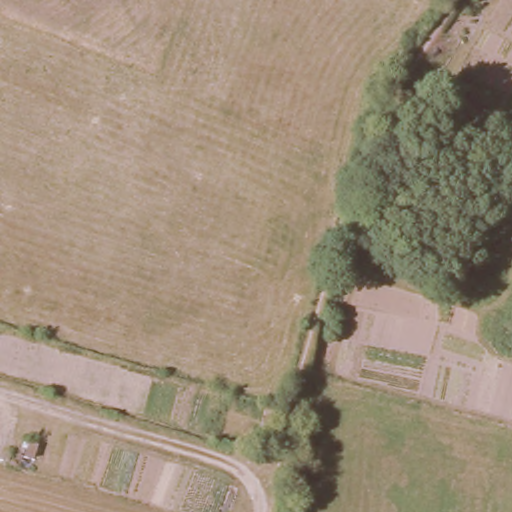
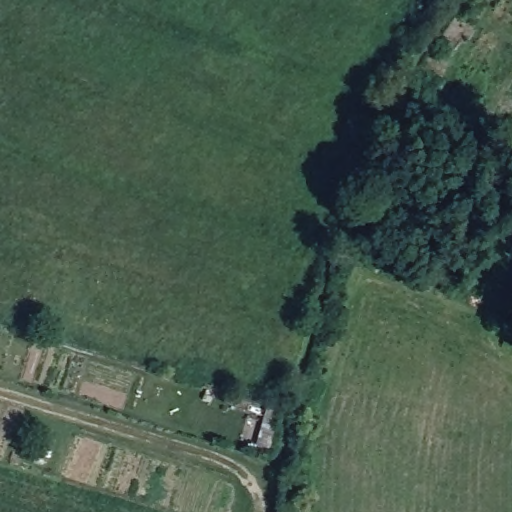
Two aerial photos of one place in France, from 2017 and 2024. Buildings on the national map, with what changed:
unchanged [(263,404),(276,409),(267,451),(251,446),(263,404)]

